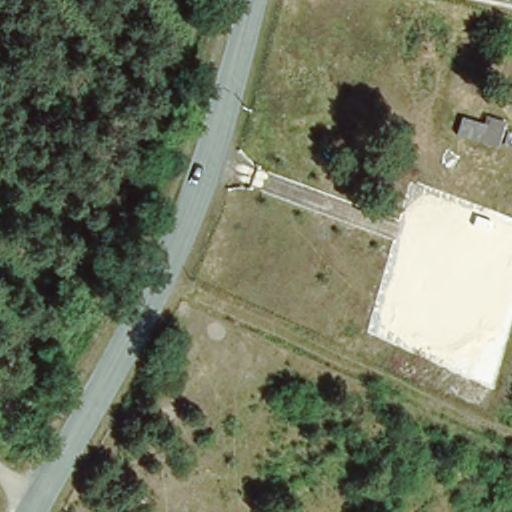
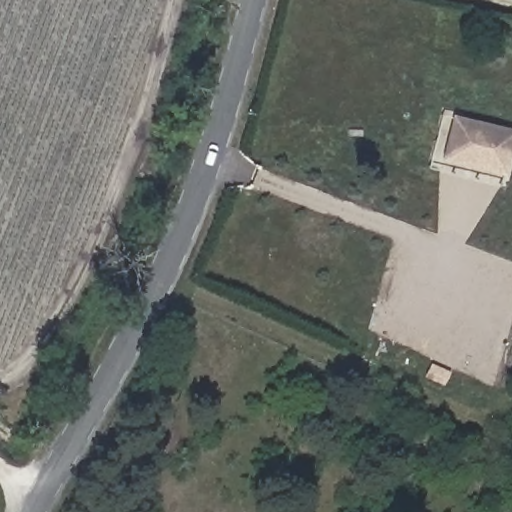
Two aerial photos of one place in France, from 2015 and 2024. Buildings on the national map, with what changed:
demolished [(456,112),(481,119),(482,112),(503,115),(496,143),(451,135),(456,112)]
new [(452,114),(512,128),(512,147),(505,173),(441,158),(452,114)]

